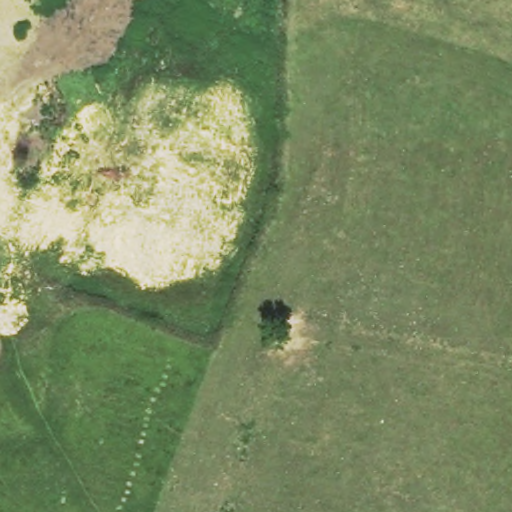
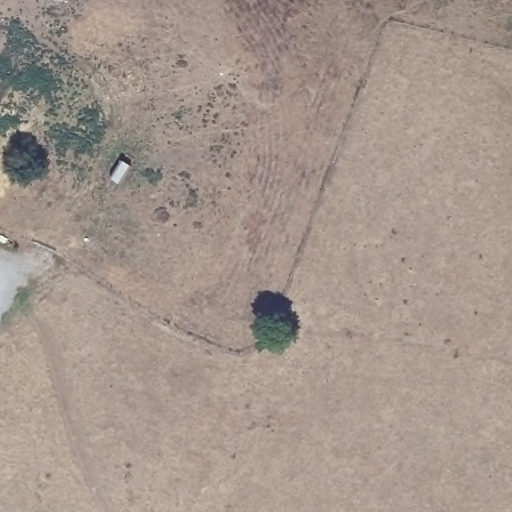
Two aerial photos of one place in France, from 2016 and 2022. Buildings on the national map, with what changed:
[]

